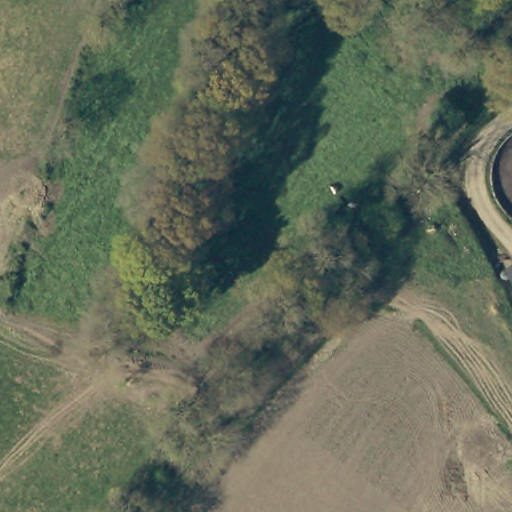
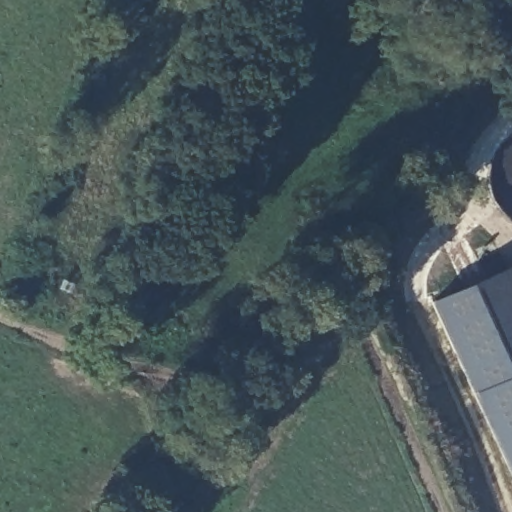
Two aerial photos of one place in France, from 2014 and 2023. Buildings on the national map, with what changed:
unchanged [(512,269),(512,282),(507,272),(512,269)]
new [(507,272),(512,282),(512,469),(435,302),(507,272)]

